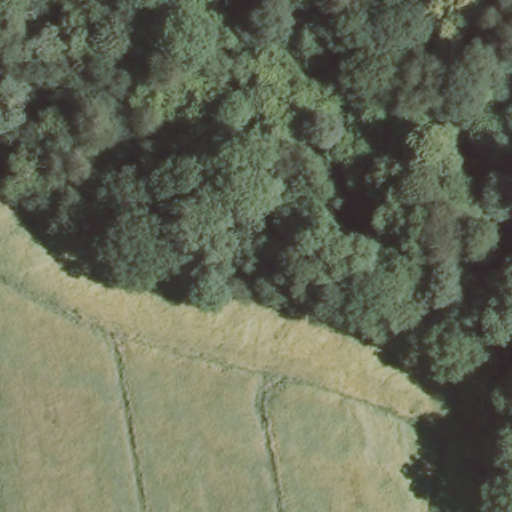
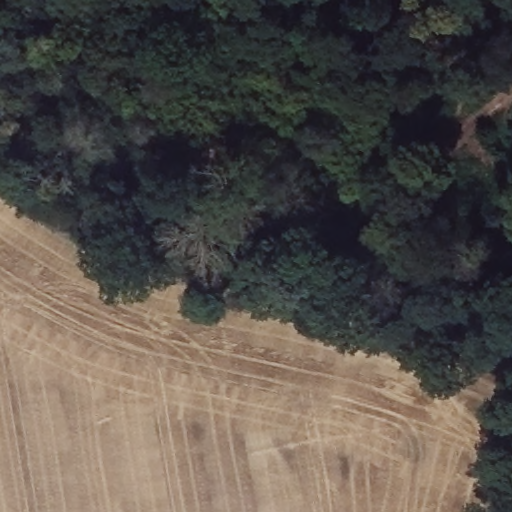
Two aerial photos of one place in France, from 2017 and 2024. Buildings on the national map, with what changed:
unchanged [(297,57),(311,71),(302,79),(287,67),(297,57)]

